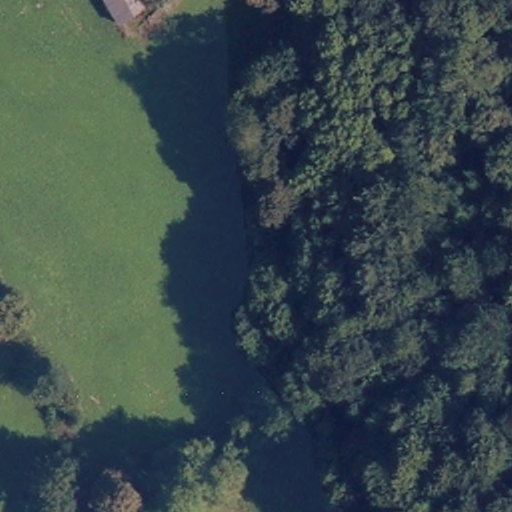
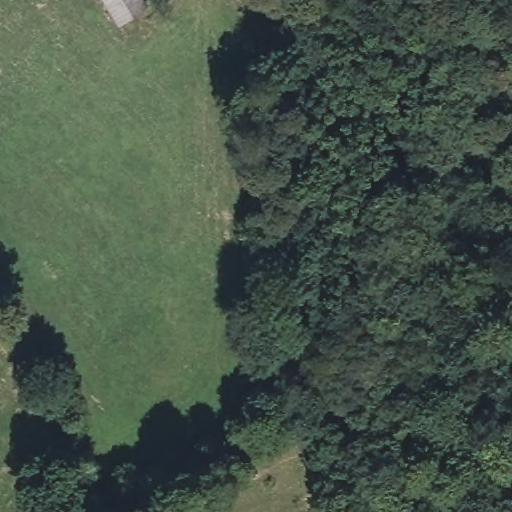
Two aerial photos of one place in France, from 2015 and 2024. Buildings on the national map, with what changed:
unchanged [(149,5),(124,21),(110,0),(146,0),(149,5)]

